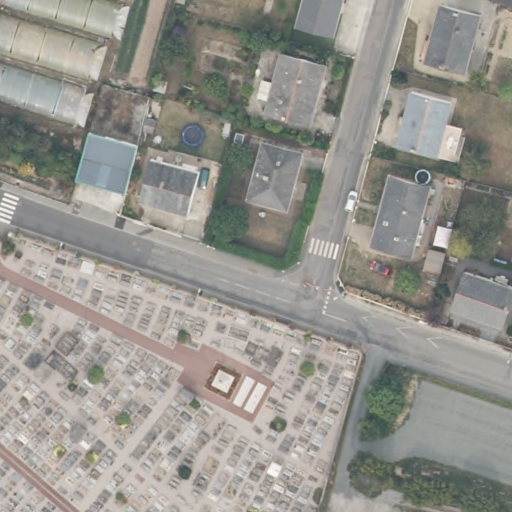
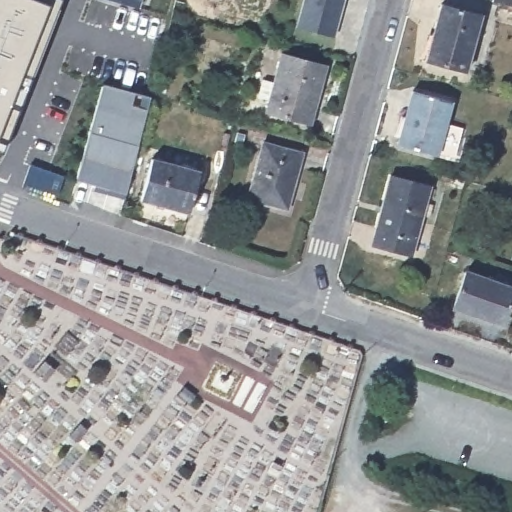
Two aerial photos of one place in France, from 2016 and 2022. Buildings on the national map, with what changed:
demolished [(86,125),(0,102),(0,9),(3,0),(126,0),(86,125)]
new [(0,153),(0,0),(60,0),(1,153),(0,153)]
new [(138,8),(111,0),(141,0),(138,8)]
unchanged [(332,37),(295,27),(302,0),(341,0),(332,37)]
unchanged [(500,4),(500,1),(498,0),(512,0),(512,7),(500,4)]
unchanged [(463,71),(424,60),(440,4),(478,15),(463,71)]
unchanged [(313,130),(269,117),(272,106),(262,102),(266,86),(277,89),(284,59),(328,72),(313,130)]
unchanged [(462,111),(456,135),(440,131),(432,160),(392,149),(407,96),(447,106),(446,107),(462,111)]
unchanged [(88,131),(138,144),(127,192),(75,179),(87,131),(88,131)]
unchanged [(285,220),(247,210),(261,157),(234,150),(239,133),(275,142),(272,155),(300,163),(285,220)]
unchanged [(187,212),(141,199),(151,157),(199,170),(187,212)]
unchanged [(410,255),(371,244),(388,177),(428,188),(410,255)]
unchanged [(501,324),(453,307),(466,270),(512,285),(512,292),(501,324)]
unchanged [(381,391),(391,396),(386,406),(376,402),(376,401),(381,391)]

